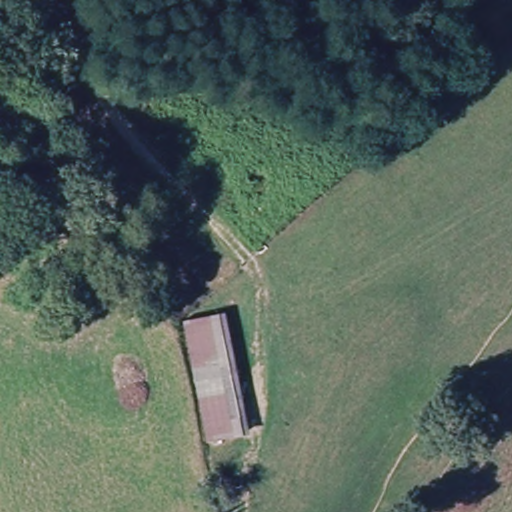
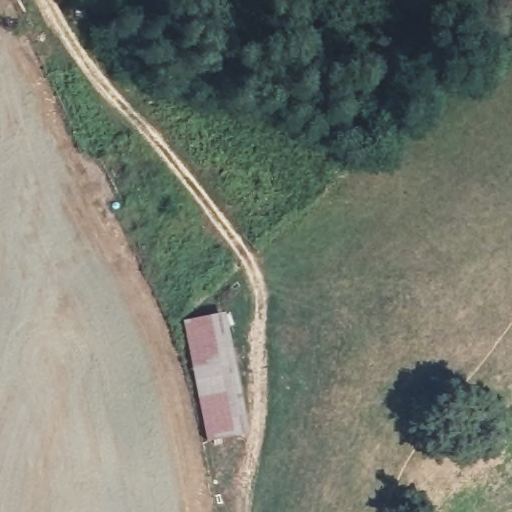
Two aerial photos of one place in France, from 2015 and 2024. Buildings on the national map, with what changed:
unchanged [(184,320),(228,313),(248,433),(207,440),(184,320)]

